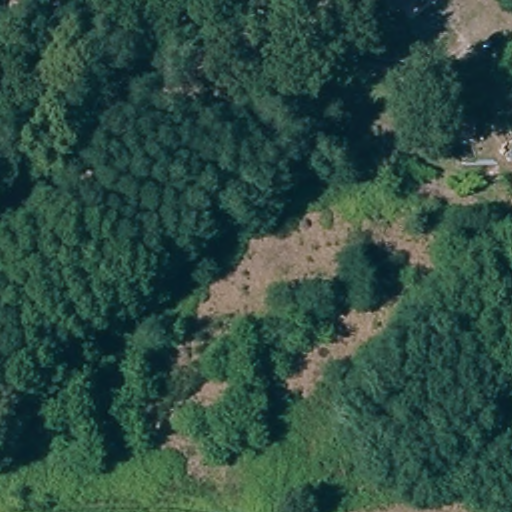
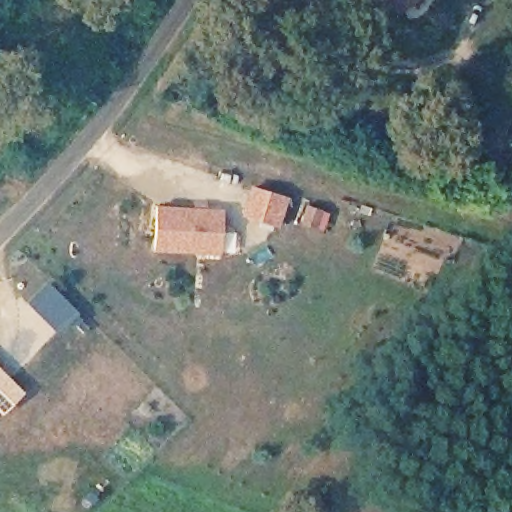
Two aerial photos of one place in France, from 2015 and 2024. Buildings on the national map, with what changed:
unchanged [(391,9),(383,0),(403,0),(391,9)]
new [(239,217),(250,185),(287,198),(278,228),(239,217)]
new [(154,250),(155,206),(222,210),(220,255),(154,250)]
new [(57,334),(26,304),(46,282),(76,314),(57,334)]
new [(1,413),(0,412),(0,369),(22,391),(1,413)]

